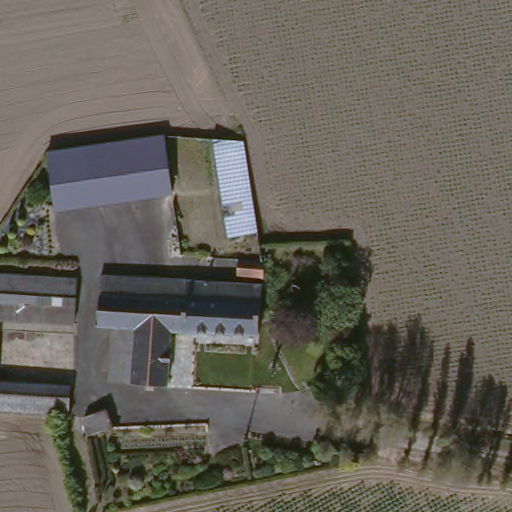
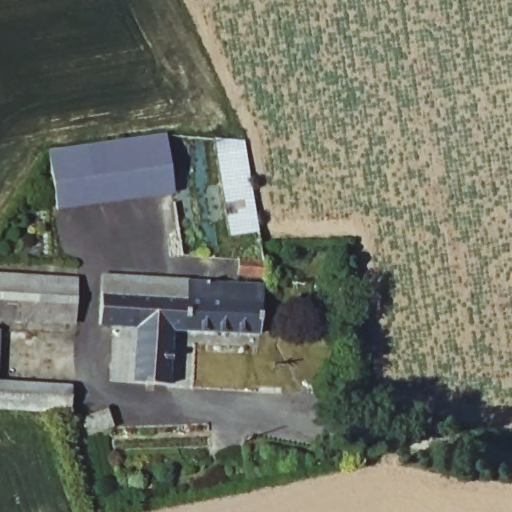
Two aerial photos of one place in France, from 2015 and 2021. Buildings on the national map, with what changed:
unchanged [(217,143),(240,140),(257,233),(235,240),(217,143)]
unchanged [(160,143),(165,200),(52,212),(49,156),(49,153),(160,143)]
unchanged [(238,280),(240,266),(262,268),(260,282),(238,280)]
unchanged [(75,334),(0,325),(0,274),(79,284),(75,334)]
unchanged [(119,329),(94,325),(104,277),(260,301),(256,345),(170,336),(166,382),(114,377),(114,374),(119,329)]
unchanged [(1,338),(0,343),(0,334),(1,334),(1,338)]
unchanged [(66,421),(0,414),(0,383),(67,391),(66,421)]
unchanged [(100,414),(107,429),(81,440),(74,425),(100,414)]

